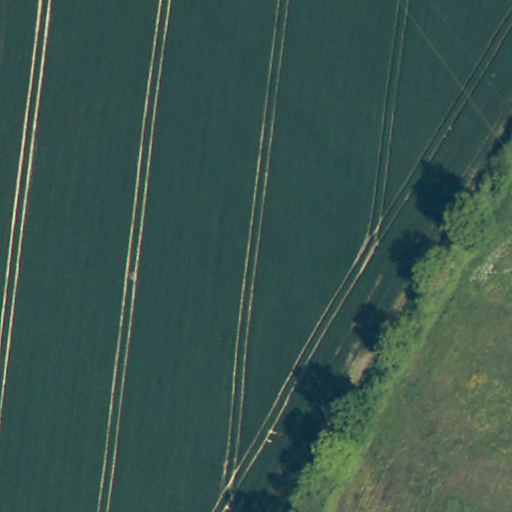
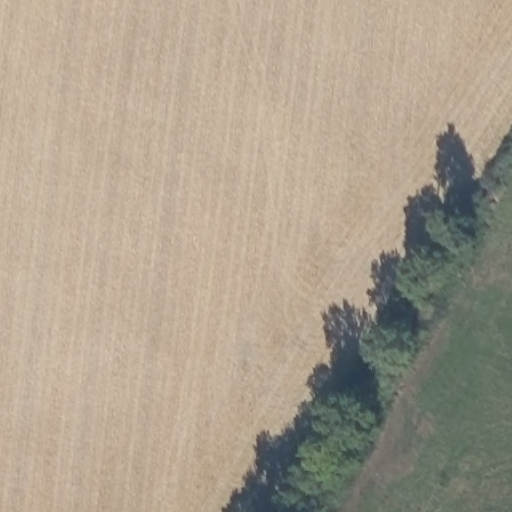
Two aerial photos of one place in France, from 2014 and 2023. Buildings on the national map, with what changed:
[]

